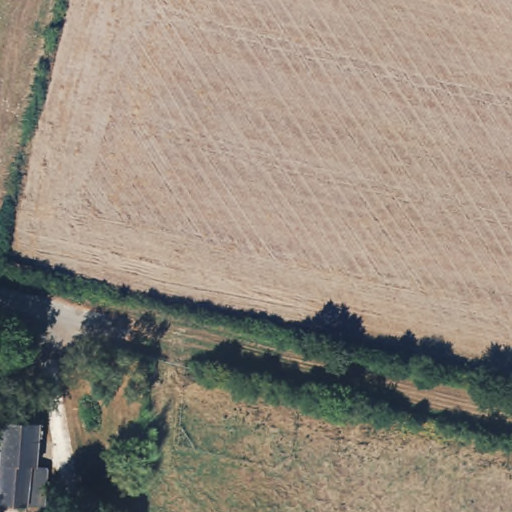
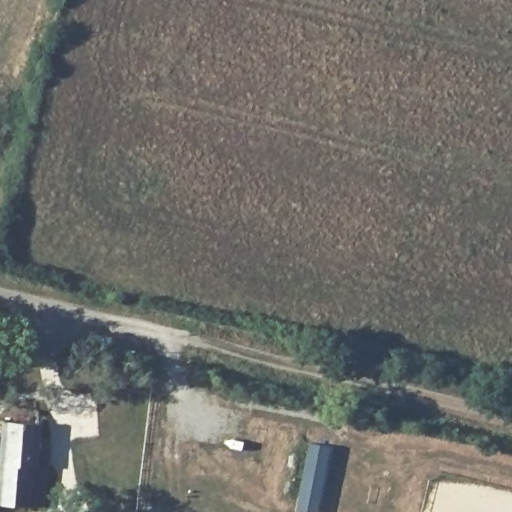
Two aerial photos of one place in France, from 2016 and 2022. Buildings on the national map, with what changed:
unchanged [(32,277),(28,288),(20,282),(22,275),(32,277)]
unchanged [(38,425),(32,467),(45,469),(39,506),(0,499),(0,495),(10,419),(38,425)]
new [(292,510),(307,442),(329,447),(315,512),(302,512),(292,510)]

